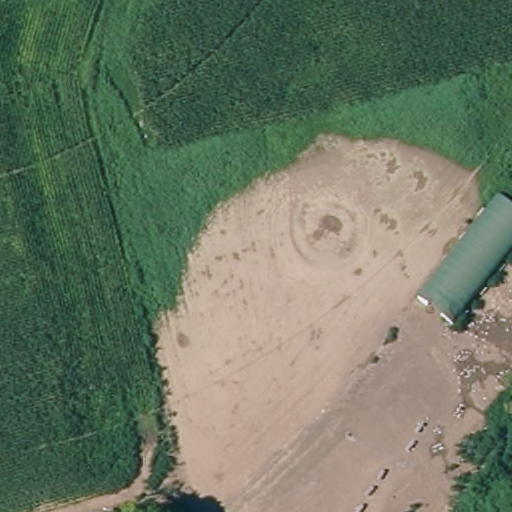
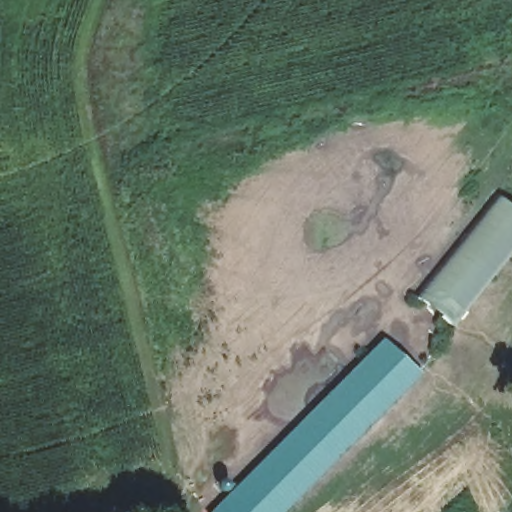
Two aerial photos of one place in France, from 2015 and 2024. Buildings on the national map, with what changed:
unchanged [(512,206),(512,247),(453,325),(419,297),(497,194),(512,206)]
new [(421,372),(283,512),(209,512),(382,338),(421,372)]
unchanged [(122,501),(126,512),(85,512),(122,501)]

